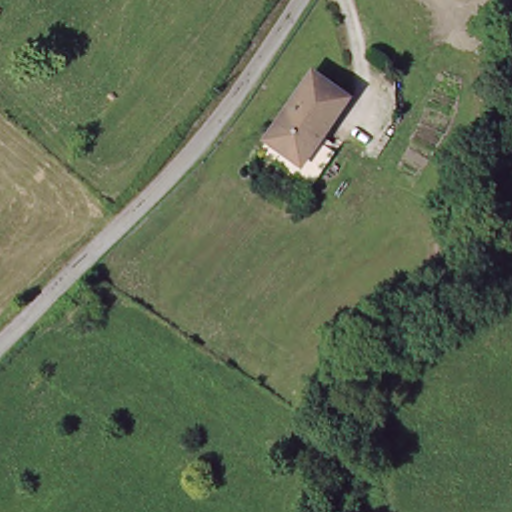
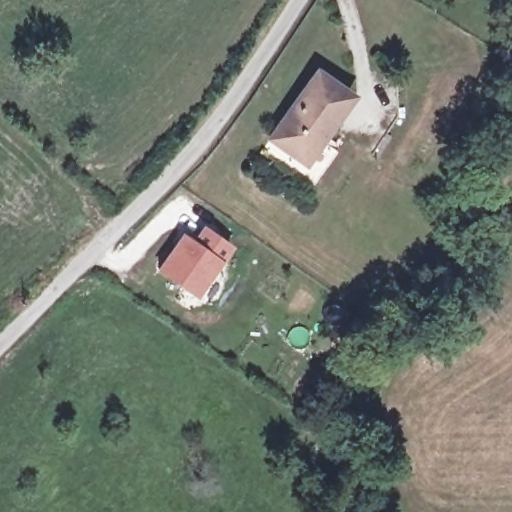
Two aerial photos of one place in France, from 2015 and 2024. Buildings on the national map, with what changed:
unchanged [(318,62),(355,87),(327,131),(345,144),(320,181),(266,142),(318,62)]
new [(162,275),(184,241),(196,249),(205,232),(231,250),(200,300),(162,275)]

